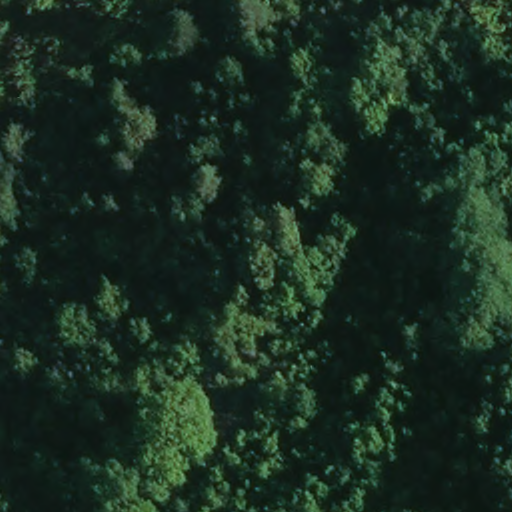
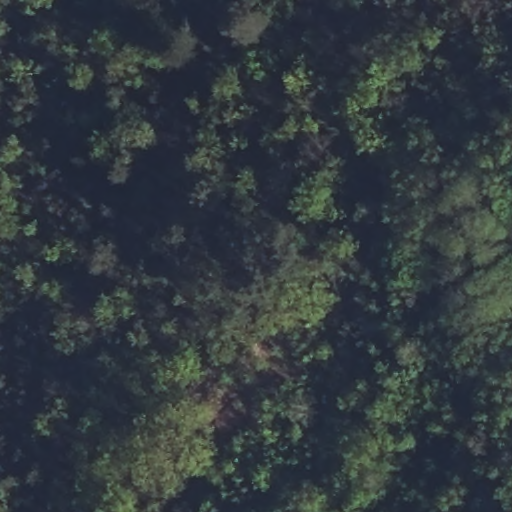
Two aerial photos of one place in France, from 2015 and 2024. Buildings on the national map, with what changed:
unchanged [(145,48),(122,34),(129,18),(154,31),(145,48)]

